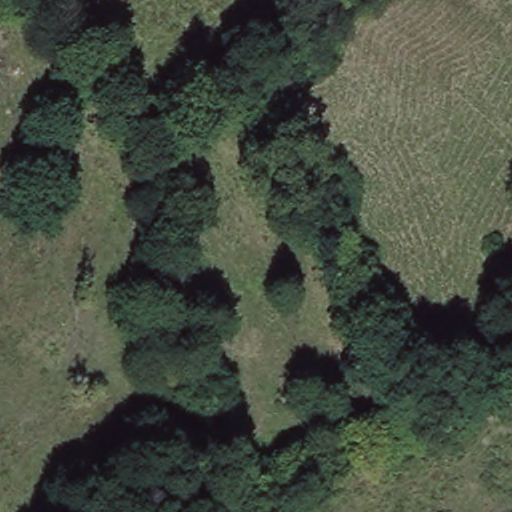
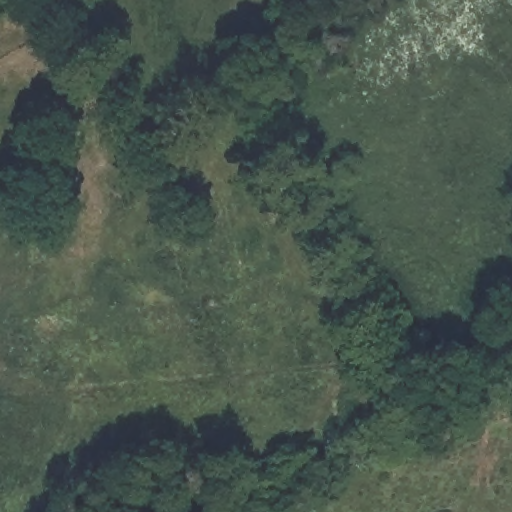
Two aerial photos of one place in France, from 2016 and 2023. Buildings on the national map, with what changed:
[]

